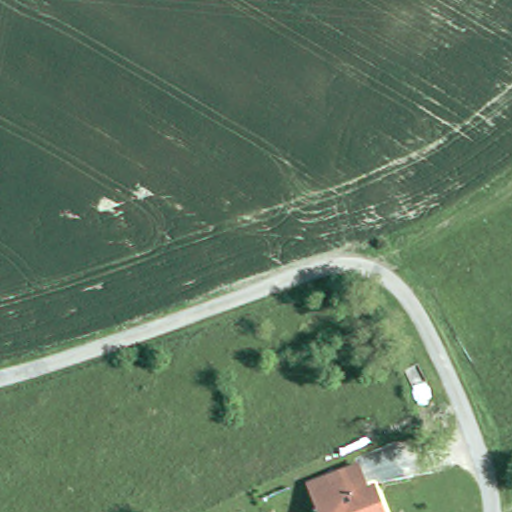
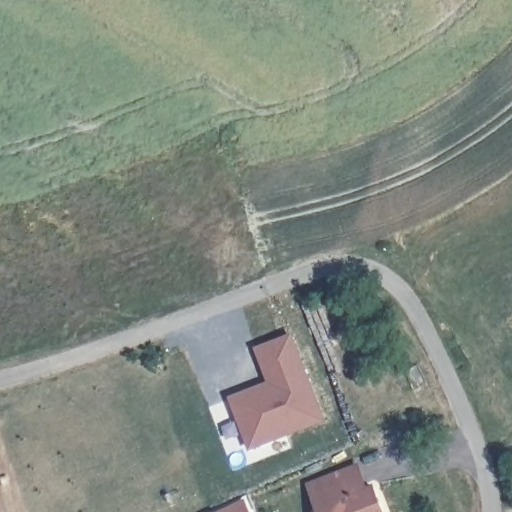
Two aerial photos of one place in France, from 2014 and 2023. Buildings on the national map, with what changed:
new [(269,378),(255,345),(287,330),(322,412),(252,443),(230,395),(269,378)]
unchanged [(309,480),(358,461),(367,485),(375,482),(386,512),(322,512),(315,495),(309,480)]
new [(250,512),(217,512),(245,499),(250,512)]

